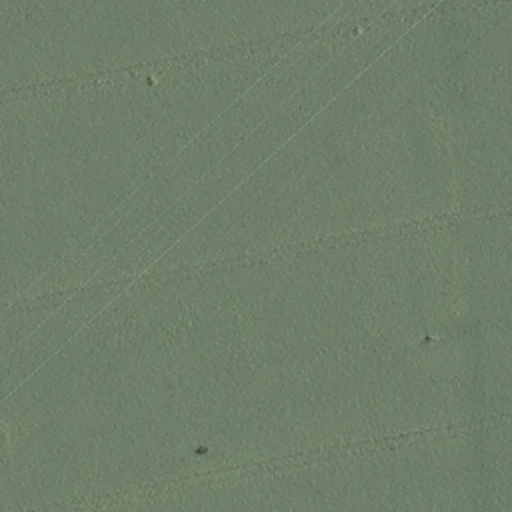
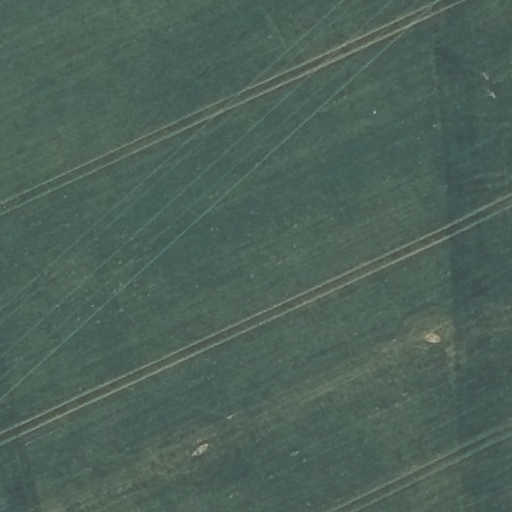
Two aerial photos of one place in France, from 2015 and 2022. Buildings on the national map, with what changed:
[]

